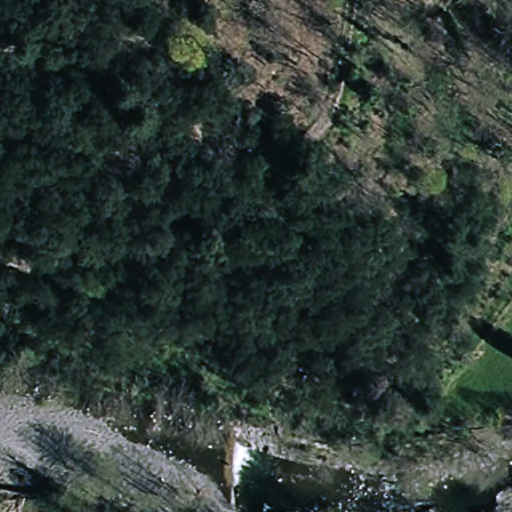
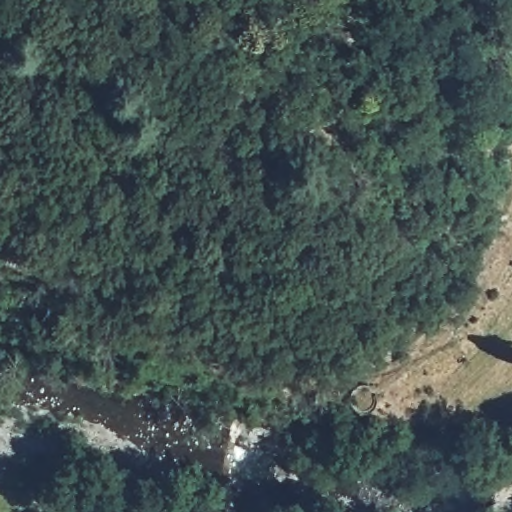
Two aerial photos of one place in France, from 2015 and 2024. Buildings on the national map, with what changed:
unchanged [(8,238),(34,248),(29,270),(3,261),(8,238)]

